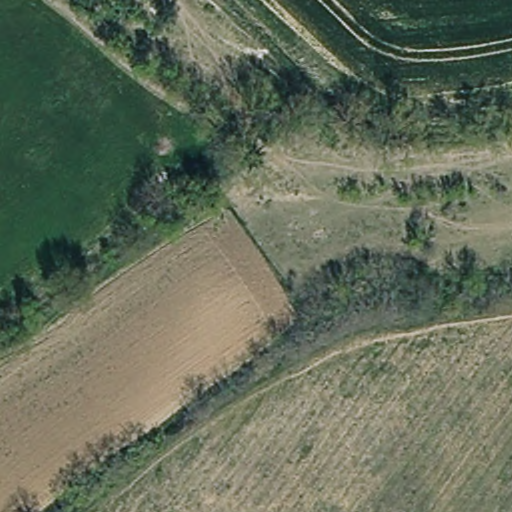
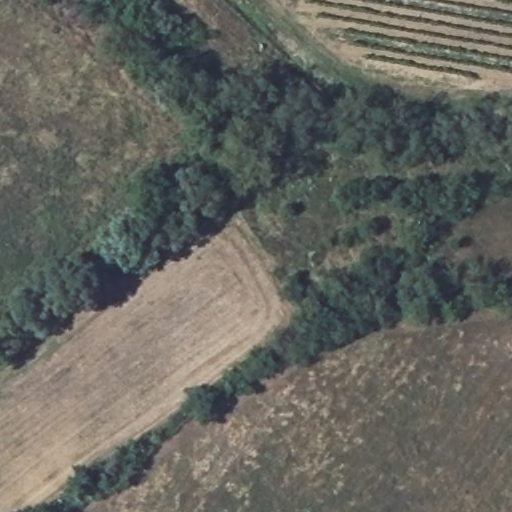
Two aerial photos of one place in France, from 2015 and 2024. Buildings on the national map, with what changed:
[]

